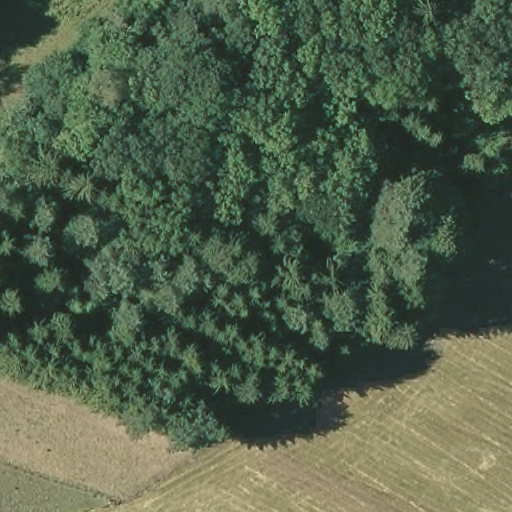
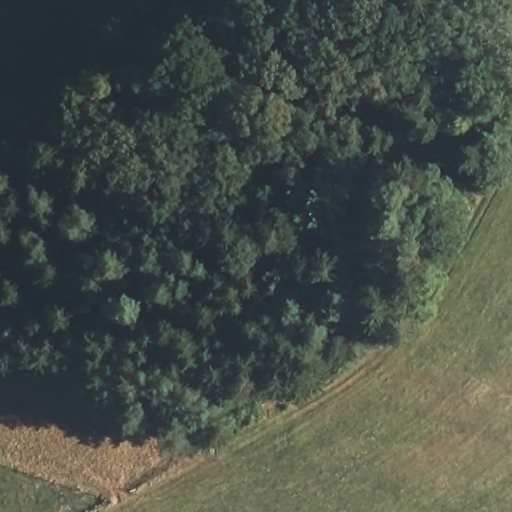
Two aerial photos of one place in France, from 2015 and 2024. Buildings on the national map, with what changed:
[]

